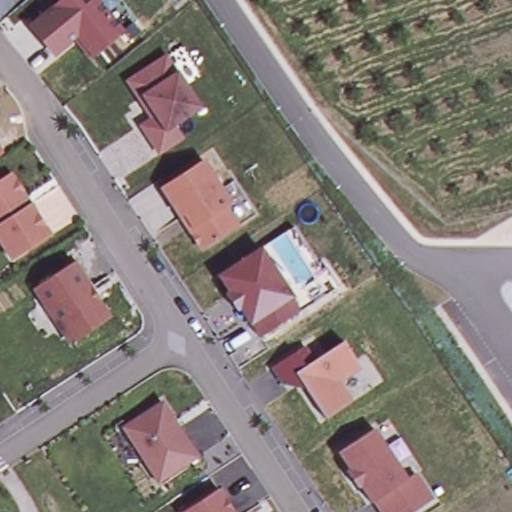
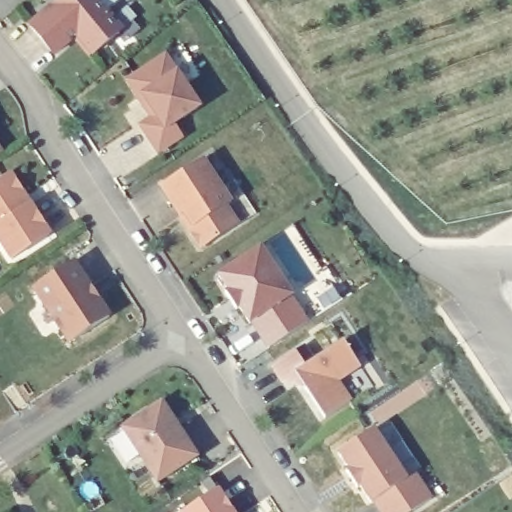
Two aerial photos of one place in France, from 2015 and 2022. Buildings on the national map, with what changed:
unchanged [(52,59),(27,25),(61,0),(100,0),(125,32),(92,59),(77,40),(52,59)]
unchanged [(125,80),(163,55),(196,107),(170,124),(178,137),(155,152),(137,125),(149,118),(136,99),(125,80)]
unchanged [(205,160),(233,204),(227,207),(240,226),(207,246),(201,245),(162,186),(205,160)]
unchanged [(15,177),(52,235),(14,260),(0,238),(0,181),(8,176),(15,177)]
unchanged [(262,248),(293,296),(292,297),(301,311),(262,336),(253,322),(252,323),(242,307),(237,310),(227,294),(230,291),(220,275),(262,248)]
unchanged [(75,262),(111,318),(72,343),(36,287),(75,262)]
unchanged [(347,402),(322,419),(292,374),(279,382),(269,367),(300,347),(310,360),(340,341),(356,366),(370,387),(347,402)]
unchanged [(164,401),(199,456),(160,482),(124,427),(164,401)]
unchanged [(408,478),(417,472),(434,498),(413,512),(382,512),(375,501),(373,502),(362,485),(359,487),(348,470),(351,469),(340,452),(375,428),(408,478)]
unchanged [(234,512),(187,512),(220,490),(234,512)]

